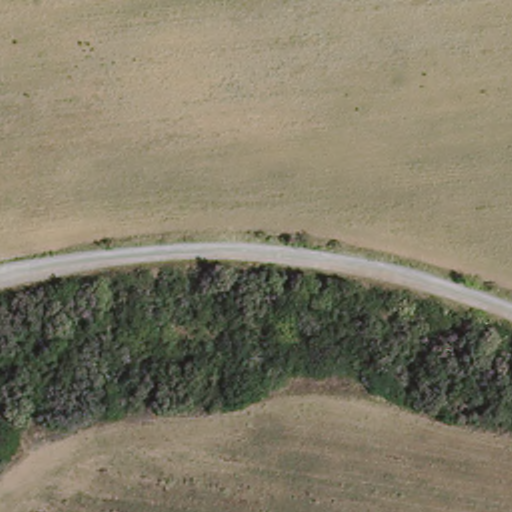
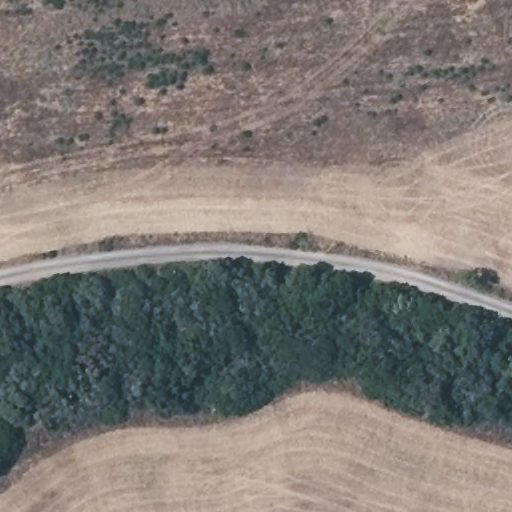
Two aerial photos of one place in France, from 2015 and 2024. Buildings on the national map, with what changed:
[]

